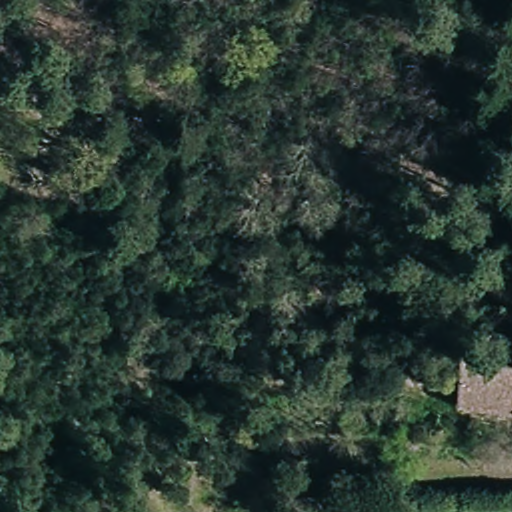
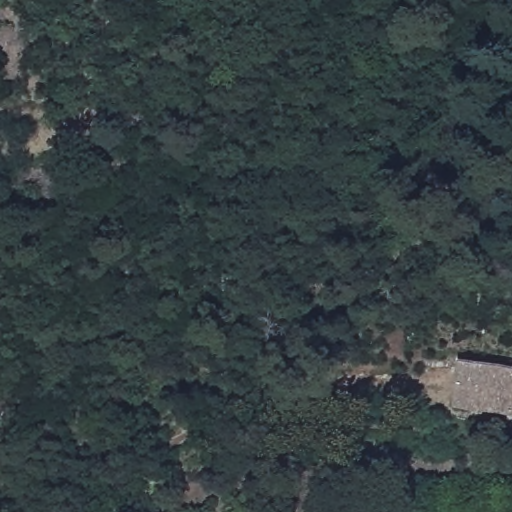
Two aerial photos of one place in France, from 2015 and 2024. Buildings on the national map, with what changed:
unchanged [(512,366),(512,415),(458,407),(459,390),(463,357),(512,366)]

